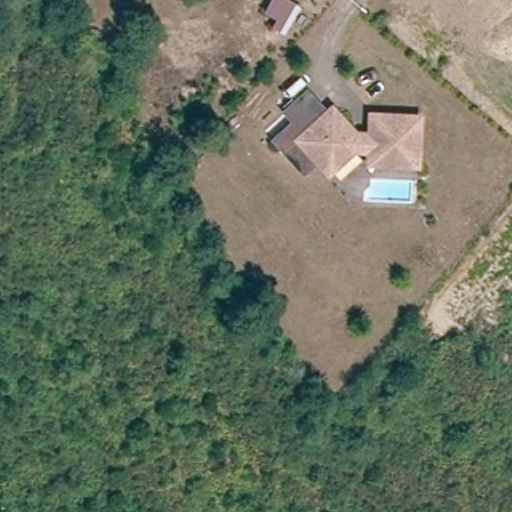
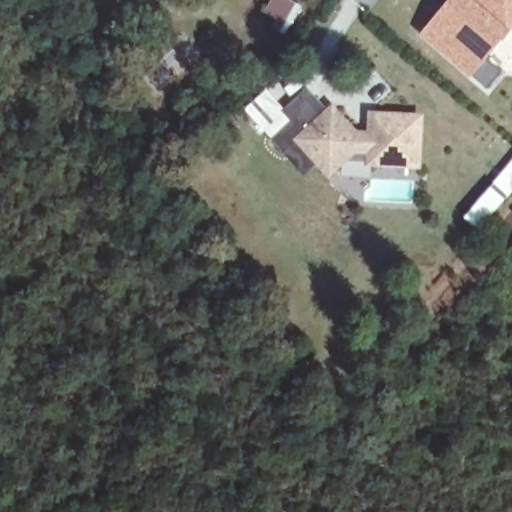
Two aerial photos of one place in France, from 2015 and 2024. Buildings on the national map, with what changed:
unchanged [(275,31),(281,23),(270,16),(279,0),(284,0),(302,12),(291,30),(286,38),(275,31)]
new [(492,19),(507,31),(486,58),(505,74),(489,91),(423,35),(452,0),(457,0),(461,5),(465,0),(471,0),(474,3),(476,0),(509,0),(492,19)]
unchanged [(286,152),(275,140),(295,122),(286,112),(308,92),(327,114),(333,109),(356,134),(371,135),(372,115),(420,117),(418,166),(370,164),(370,152),(355,151),(330,174),(317,160),(303,172),(286,152)]

